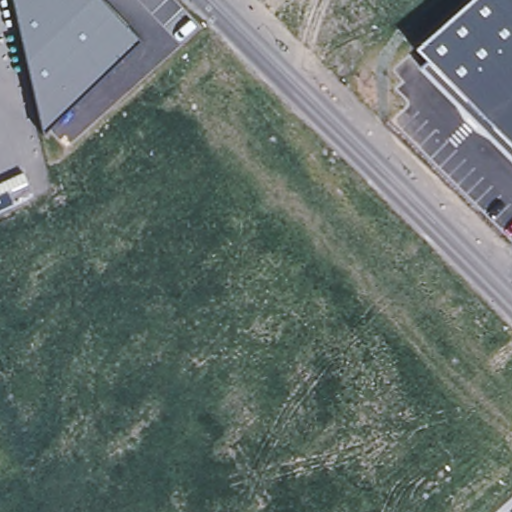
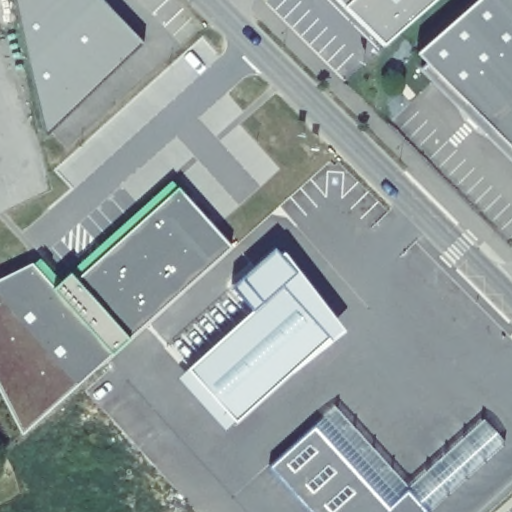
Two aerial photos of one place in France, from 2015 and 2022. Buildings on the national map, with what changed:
unchanged [(45,133),(13,0),(104,0),(141,39),(45,133)]
new [(338,0),(435,0),(384,45),(338,0)]
unchanged [(430,63),(419,51),(475,0),(512,0),(512,158),(424,69),(430,63)]
new [(32,262),(54,287),(71,271),(77,277),(179,186),(232,246),(23,434),(0,390),(0,278),(32,262)]
new [(262,301),(241,277),(275,246),(282,253),(297,271),(283,283),(330,336),(292,370),(236,421),(189,367),(262,301)]
new [(284,251),(345,330),(293,371),(292,370),(330,336),(283,283),(297,271),(282,253),(284,251)]
new [(189,367),(236,421),(225,431),(178,377),(189,367)]
new [(336,406),(410,487),(486,418),(506,440),(430,510),(429,510),(428,511),(408,489),(390,506),(316,425),(336,406)]
new [(316,425),(390,506),(408,489),(428,511),(426,512),(311,512),(269,467),(316,425)]

